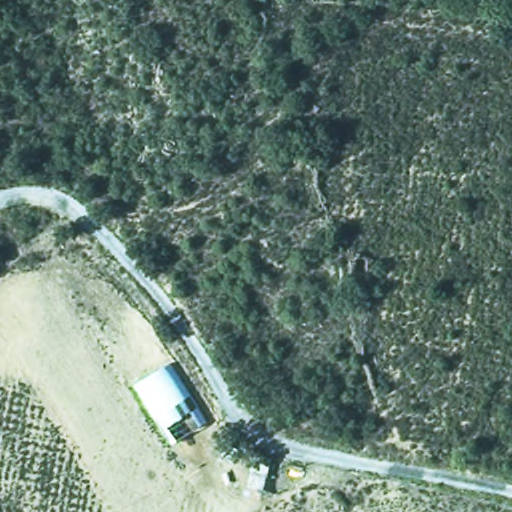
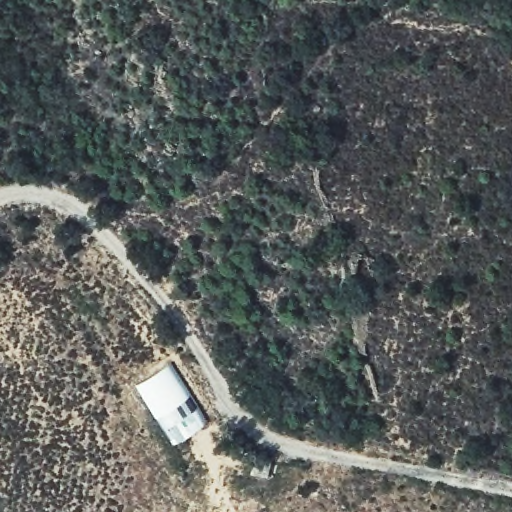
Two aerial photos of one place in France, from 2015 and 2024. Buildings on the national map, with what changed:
unchanged [(174,448),(134,385),(172,361),(210,423),(174,448)]
unchanged [(248,448),(272,450),(270,475),(246,471),(248,448)]

